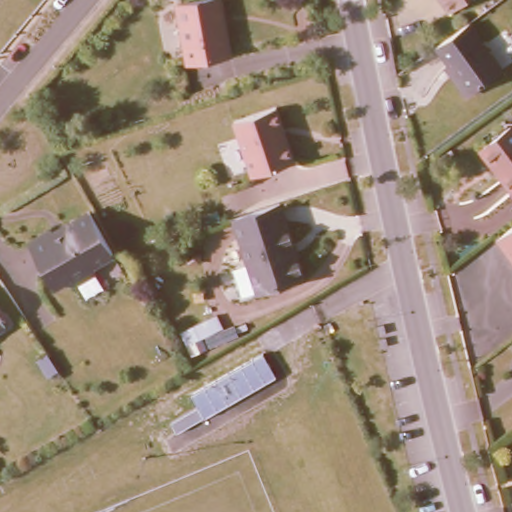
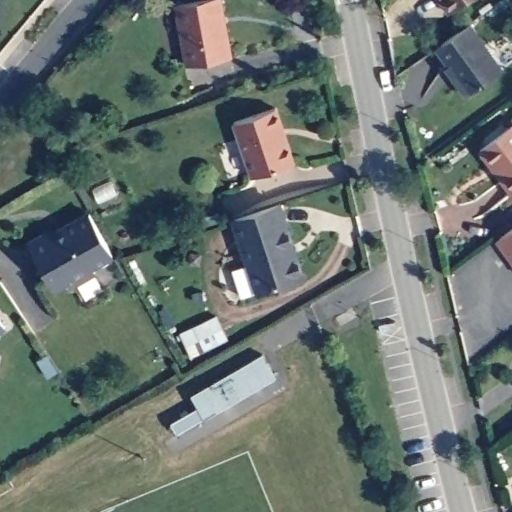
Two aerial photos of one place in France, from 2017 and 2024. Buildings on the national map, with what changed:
unchanged [(184,68),(176,6),(204,0),(227,0),(235,59),(184,68)]
unchanged [(437,0),(470,0),(447,15),(437,0)]
unchanged [(509,64),(466,96),(445,70),(450,65),(437,48),(477,21),(509,64)]
unchanged [(275,112),(294,166),(252,180),(234,126),(275,112)]
unchanged [(482,148),(512,126),(512,187),(482,148)]
unchanged [(279,204),(302,275),(257,290),(233,219),(279,204)]
unchanged [(120,258),(100,268),(103,273),(76,287),(72,281),(57,290),(33,241),(94,208),(120,258)]
unchanged [(494,244),(512,230),(512,268),(494,244)]
unchanged [(0,330),(0,307),(10,322),(0,330)]
unchanged [(225,410),(214,389),(269,358),(280,377),(225,410)]

